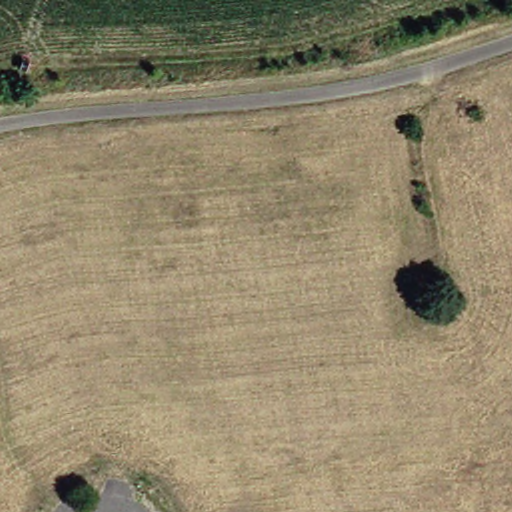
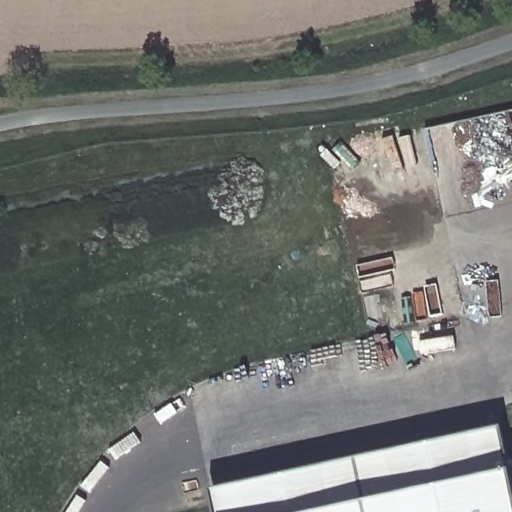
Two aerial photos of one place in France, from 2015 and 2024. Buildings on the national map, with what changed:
new [(499,428),(510,472),(512,479),(512,512),(214,512),(211,490),(499,428)]

